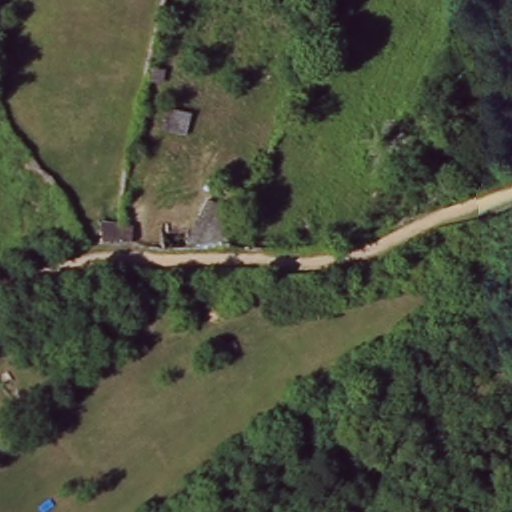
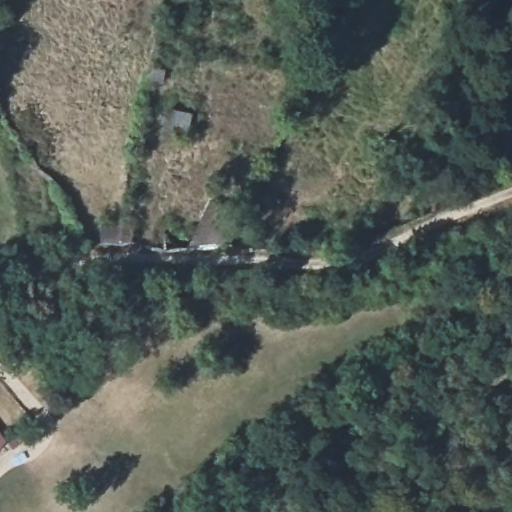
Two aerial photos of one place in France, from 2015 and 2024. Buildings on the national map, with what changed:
unchanged [(212,210),(247,226),(236,251),(230,251),(218,252),(195,254),(192,254),(212,210)]
unchanged [(132,228),(132,245),(106,245),(106,225),(132,228)]
unchanged [(5,440),(0,442),(0,433),(5,440)]

